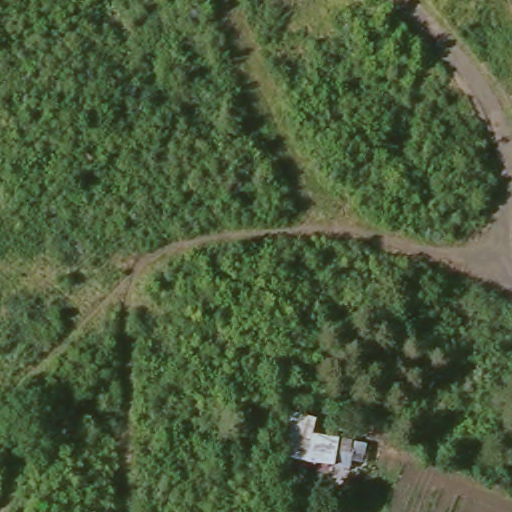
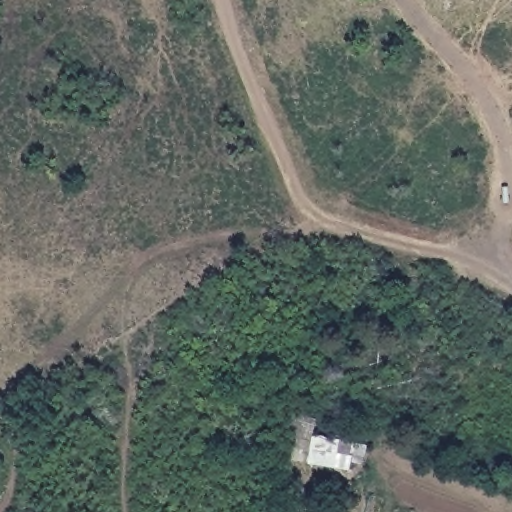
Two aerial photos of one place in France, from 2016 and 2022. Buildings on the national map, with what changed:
unchanged [(335,470),(307,466),(311,435),(340,440),(335,470)]

